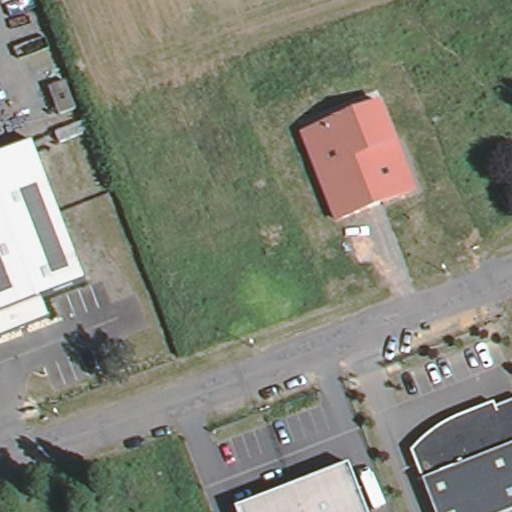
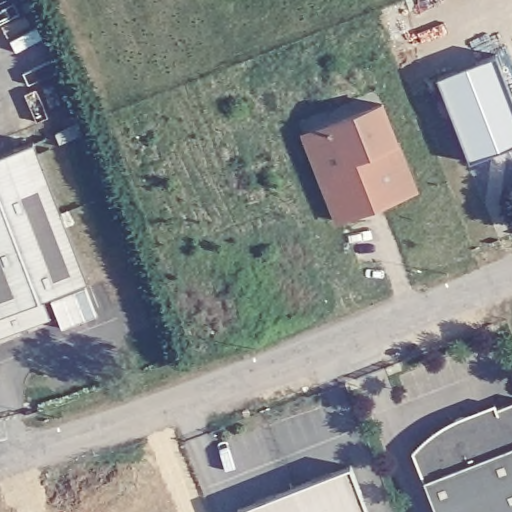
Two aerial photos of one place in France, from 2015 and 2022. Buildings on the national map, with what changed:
new [(512,95),(512,145),(470,164),(437,78),(497,55),(512,95)]
unchanged [(300,133),(384,100),(399,142),(417,190),(336,222),(300,133)]
unchanged [(84,278),(40,297),(48,316),(0,334),(0,152),(30,140),(84,278)]
unchanged [(443,424),(451,419),(460,416),(492,403),(495,408),(512,401),(512,512),(433,512),(420,481),(421,479),(410,451),(417,443),(430,432),(443,424)]
unchanged [(368,512),(240,512),(351,469),(368,512)]

